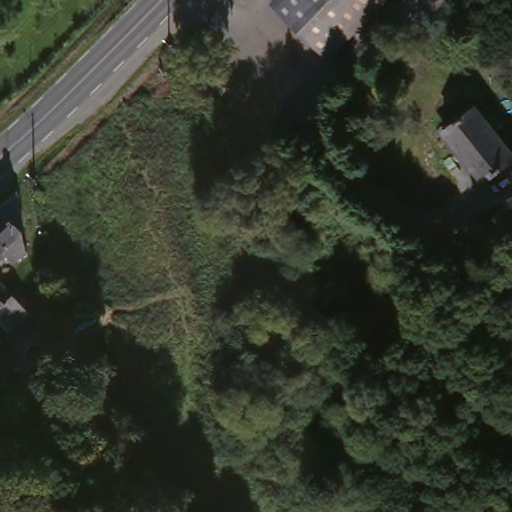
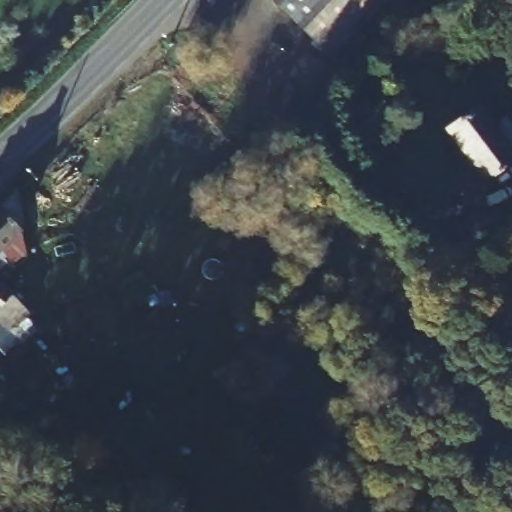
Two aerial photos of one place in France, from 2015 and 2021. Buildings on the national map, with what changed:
unchanged [(325,60),(266,4),(270,0),(382,0),(325,60)]
unchanged [(510,154),(477,180),(439,130),(473,105),(510,154)]
unchanged [(7,192),(11,190),(19,225),(15,228),(22,254),(6,267),(0,258),(0,200),(7,192)]
unchanged [(25,316),(20,322),(27,330),(14,346),(0,332),(0,291),(25,316)]
unchanged [(22,354),(0,377),(0,376),(0,332),(14,346),(22,354)]

